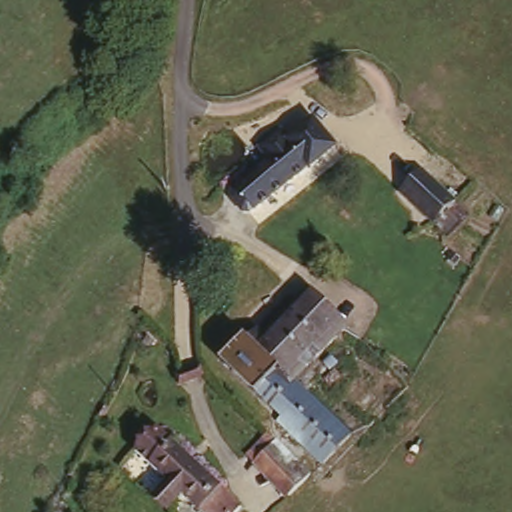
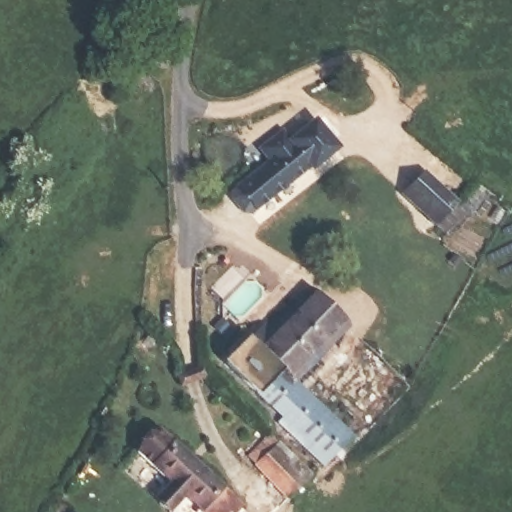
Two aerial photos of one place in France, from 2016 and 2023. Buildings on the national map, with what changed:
unchanged [(250,210),(242,209),(231,195),(231,187),(299,132),(317,156),(250,210)]
unchanged [(435,220),(403,190),(424,167),(457,199),(435,220)]
unchanged [(325,471),(278,427),(282,423),(225,368),(246,347),(252,352),(307,294),(309,296),(347,333),(295,388),(352,442),(325,471)]
unchanged [(158,431),(240,507),(235,512),(202,512),(183,495),(175,505),(160,492),(170,482),(138,452),(158,431)]
unchanged [(289,502),(287,505),(244,458),(265,439),(267,437),(311,482),(289,502)]

